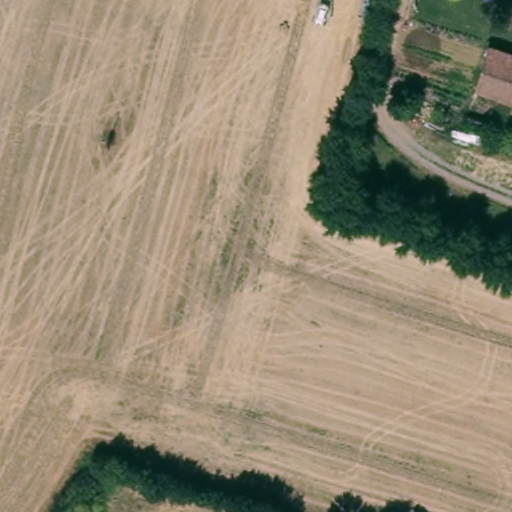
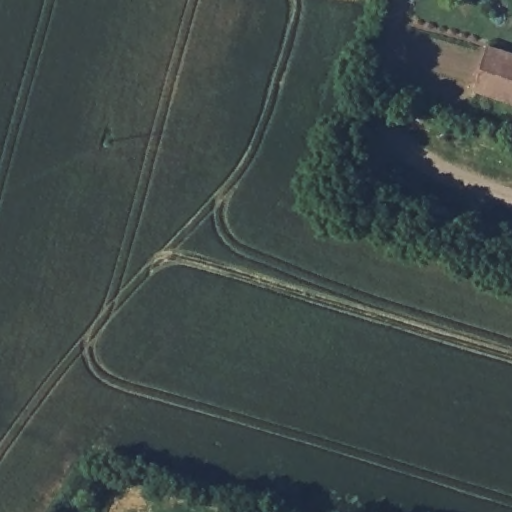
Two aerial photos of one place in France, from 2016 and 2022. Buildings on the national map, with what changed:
unchanged [(512,48),(512,110),(494,104),(486,128),(464,121),(492,41),(512,48)]

